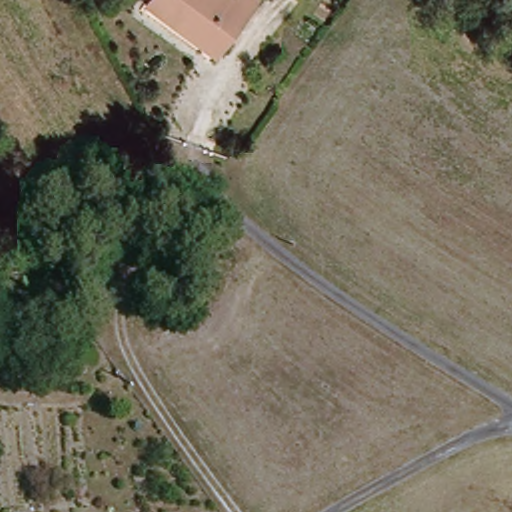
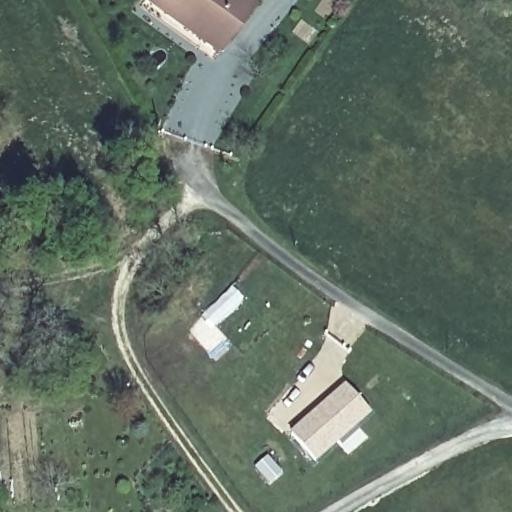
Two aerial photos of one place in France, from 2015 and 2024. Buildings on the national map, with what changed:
unchanged [(190,24),(163,0),(265,0),(219,51),(190,24)]
new [(317,409),(345,386),(368,412),(314,459),(290,434),(308,417),(317,409)]

